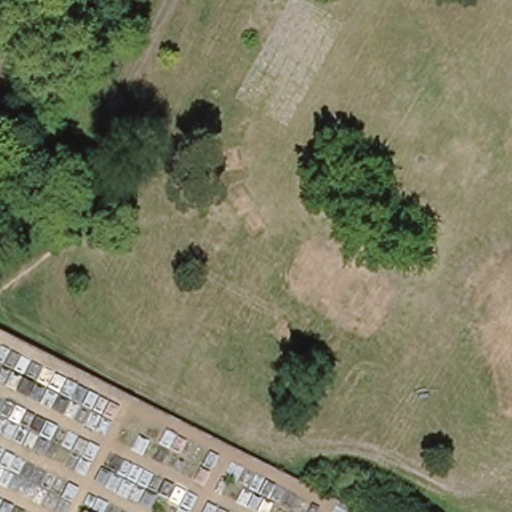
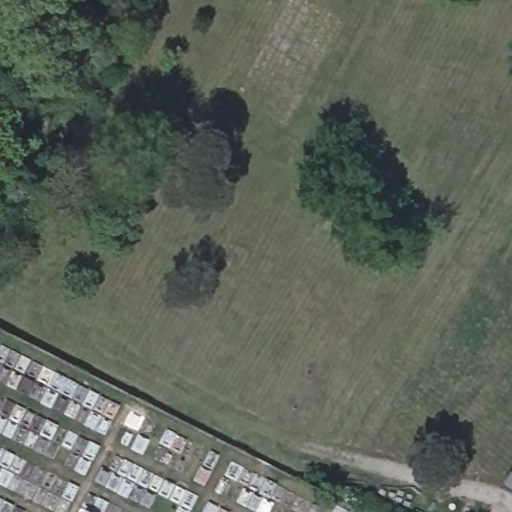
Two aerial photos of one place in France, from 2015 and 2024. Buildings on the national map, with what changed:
new [(505,482),(512,471),(512,487),(505,482)]

